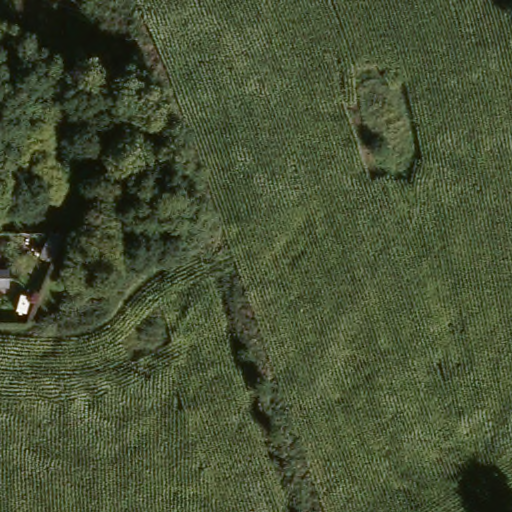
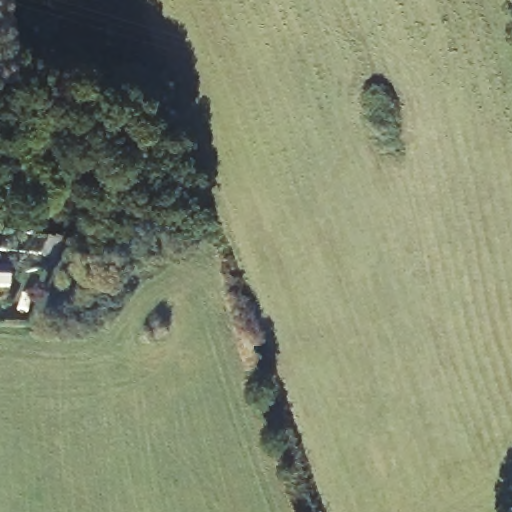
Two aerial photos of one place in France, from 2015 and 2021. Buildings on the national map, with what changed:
unchanged [(2,255),(0,254),(0,237),(4,237),(2,255)]
unchanged [(12,295),(0,294),(0,275),(12,276),(12,295)]

